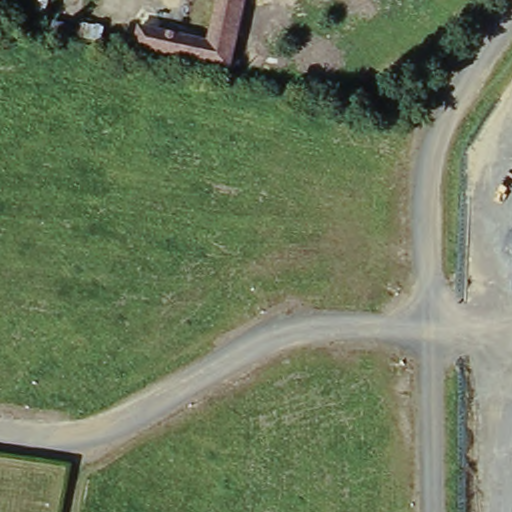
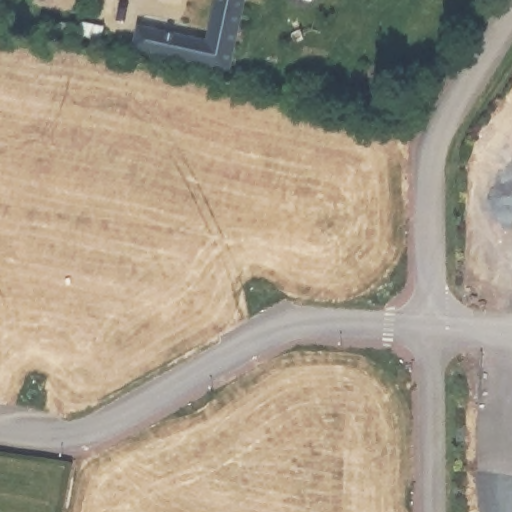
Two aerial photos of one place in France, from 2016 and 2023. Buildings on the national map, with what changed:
unchanged [(140,32),(206,48),(218,0),(246,0),(230,75),(135,54),(140,32)]
unchanged [(103,27),(100,41),(77,37),(80,24),(103,27)]

